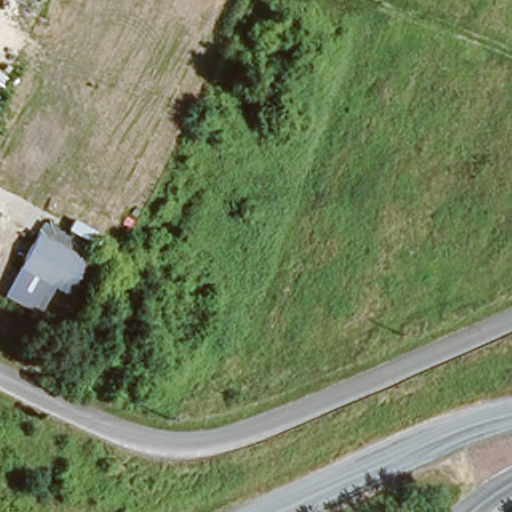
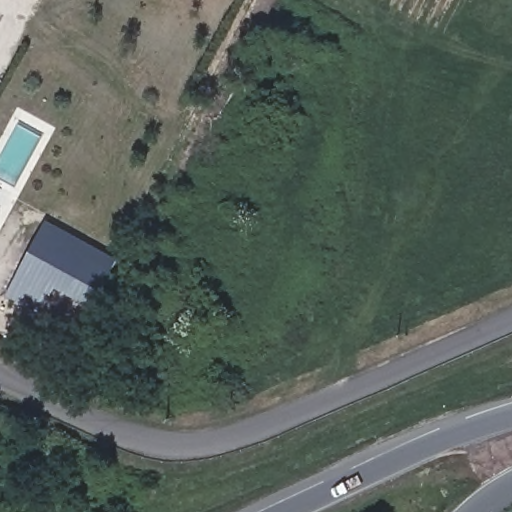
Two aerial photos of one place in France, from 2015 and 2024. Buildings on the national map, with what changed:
unchanged [(53,283),(38,313),(10,299),(39,241),(47,226),(96,252),(88,266),(73,295),(53,283)]

